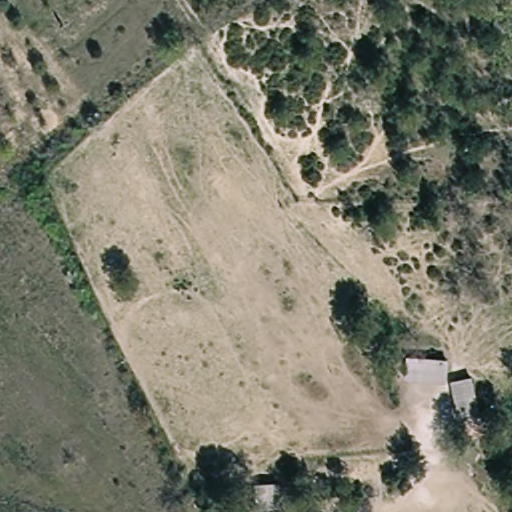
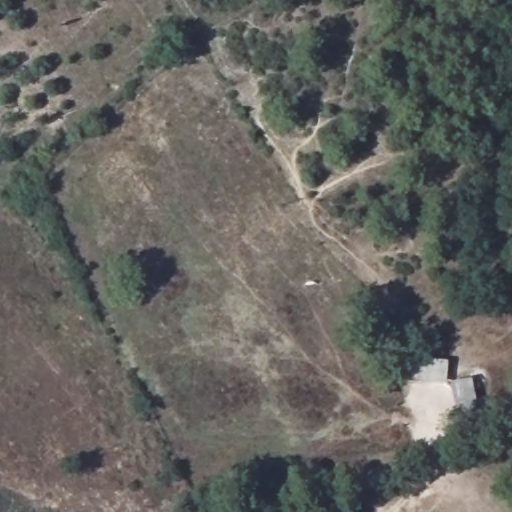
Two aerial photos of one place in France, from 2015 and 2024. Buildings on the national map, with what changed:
unchanged [(412,358),(449,360),(447,381),(410,381),(412,358)]
unchanged [(459,423),(449,382),(470,379),(480,419),(459,423)]

